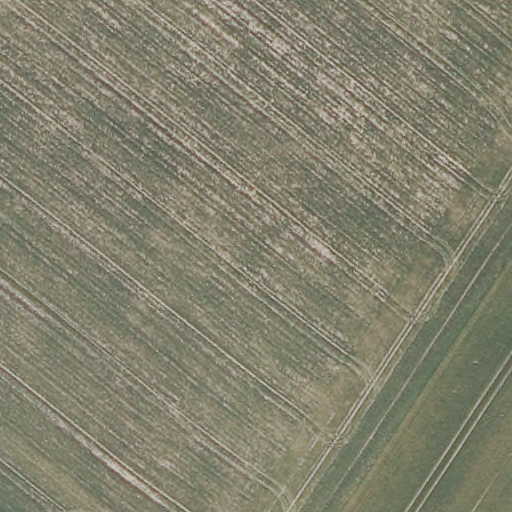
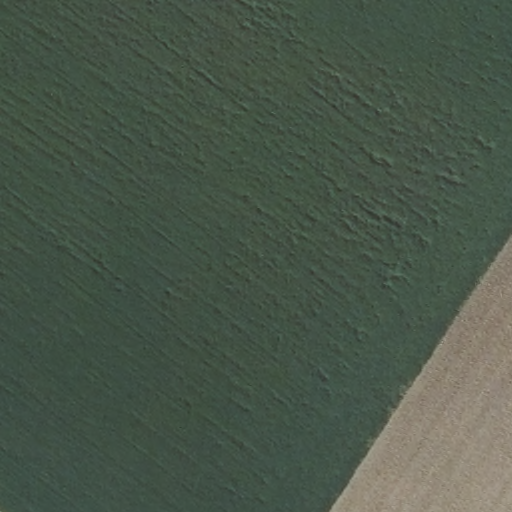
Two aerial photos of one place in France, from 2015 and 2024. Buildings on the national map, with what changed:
[]

